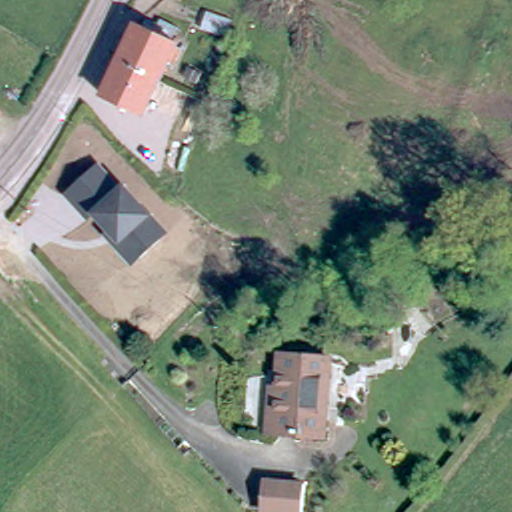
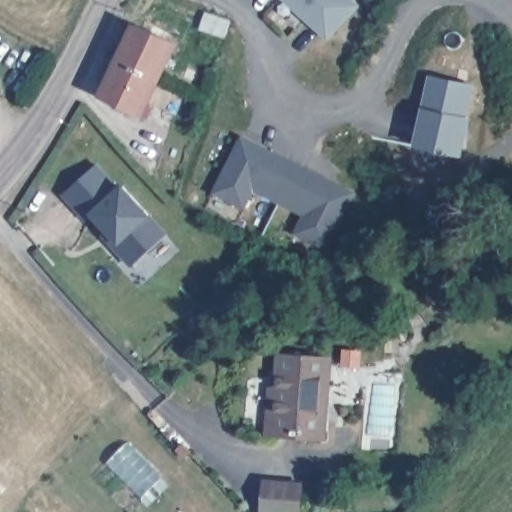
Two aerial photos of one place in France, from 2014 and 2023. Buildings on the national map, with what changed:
new [(327,40),(284,0),(355,0),(360,4),(327,40)]
unchanged [(198,34),(204,16),(227,24),(221,40),(198,34)]
unchanged [(110,115),(116,103),(99,95),(134,24),(174,44),(181,47),(173,64),(166,61),(141,114),(135,127),(110,115)]
new [(474,83),(469,115),(462,155),(414,145),(423,108),(430,74),(474,83)]
new [(354,188),(329,247),(294,233),(302,215),(256,190),(245,209),(213,194),(241,135),(354,188)]
unchanged [(105,230),(91,215),(87,219),(63,194),(98,163),(119,186),(124,183),(153,217),(167,233),(131,266),(102,234),(105,230)]
unchanged [(329,355),(324,432),(276,430),(281,352),(329,355)]
unchanged [(303,481),(300,512),(260,512),(264,477),(303,481)]

